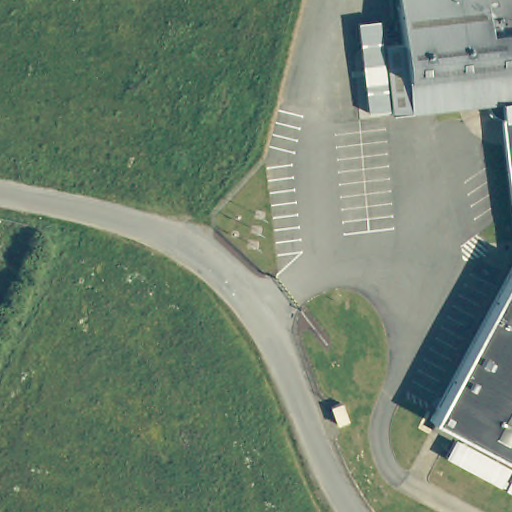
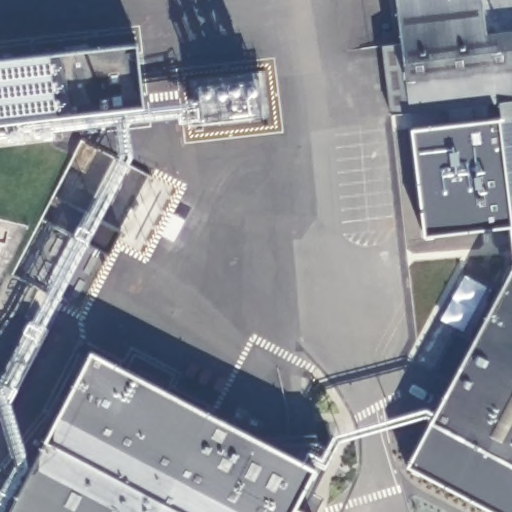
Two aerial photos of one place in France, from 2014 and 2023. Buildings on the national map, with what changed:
unchanged [(508,120),(501,118),(496,111),(494,104),(399,113),(391,42),(409,40),(404,0),(512,0),(512,158),(508,120)]
new [(0,119),(0,56),(136,41),(143,103),(0,119)]
new [(262,69),(269,111),(198,120),(194,79),(262,69)]
unchanged [(457,433),(454,439),(438,429),(441,424),(435,421),(493,314),(512,278),(512,463),(457,433)]
new [(316,433),(316,441),(334,450),(313,492),(323,496),(315,512),(5,512),(44,438),(89,350),(255,436),(316,433)]
unchanged [(336,412),(346,408),(353,426),(342,429),(336,412)]

